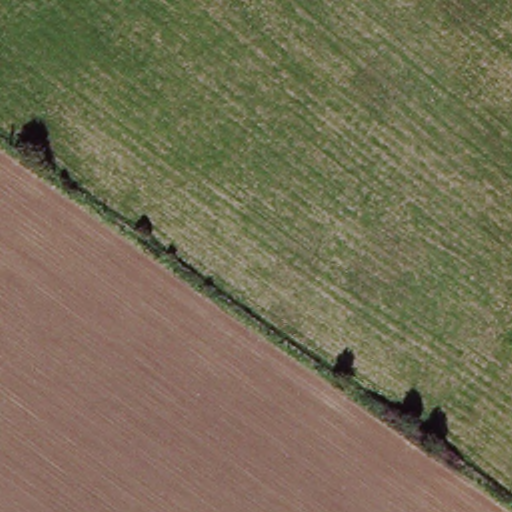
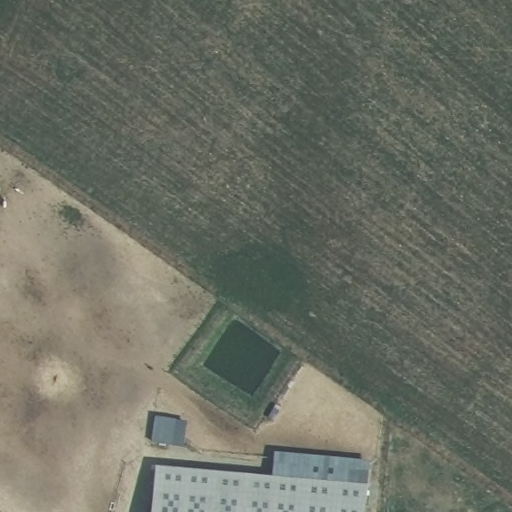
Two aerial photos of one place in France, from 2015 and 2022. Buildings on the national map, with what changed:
new [(366,512),(153,512),(157,468),(369,486),(366,512)]

